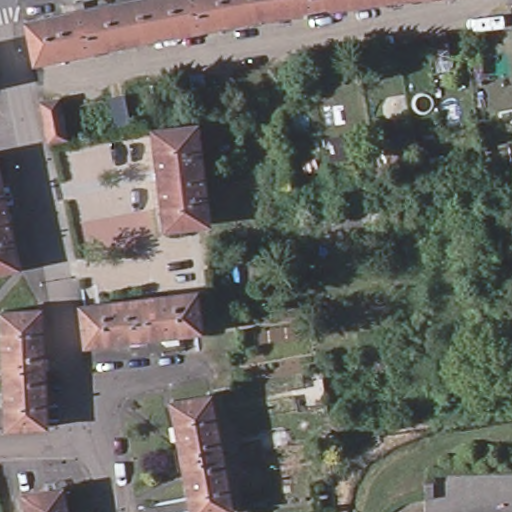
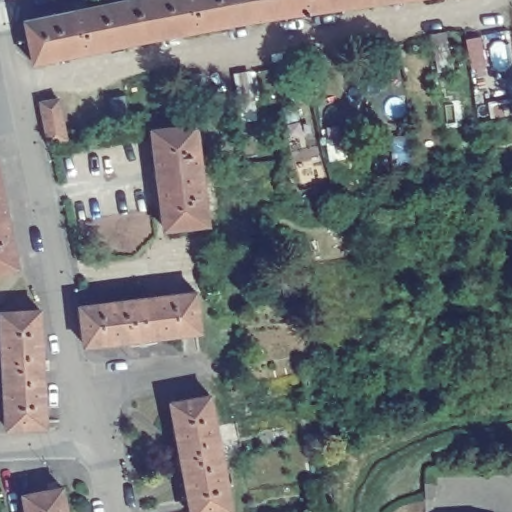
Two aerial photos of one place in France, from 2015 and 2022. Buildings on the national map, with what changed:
unchanged [(390,5),(253,21),(35,71),(24,23),(134,0),(426,0),(390,5)]
unchanged [(67,110),(73,146),(50,148),(45,111),(67,110)]
unchanged [(208,229),(161,235),(151,128),(196,125),(208,229)]
unchanged [(19,272),(0,276),(0,180),(19,272)]
unchanged [(202,336),(84,352),(80,307),(198,292),(202,336)]
unchanged [(44,430),(3,433),(0,368),(0,311),(41,313),(44,430)]
unchanged [(190,512),(169,404),(213,396),(231,512),(190,512)]
unchanged [(23,512),(19,495),(63,488),(66,512),(23,512)]

